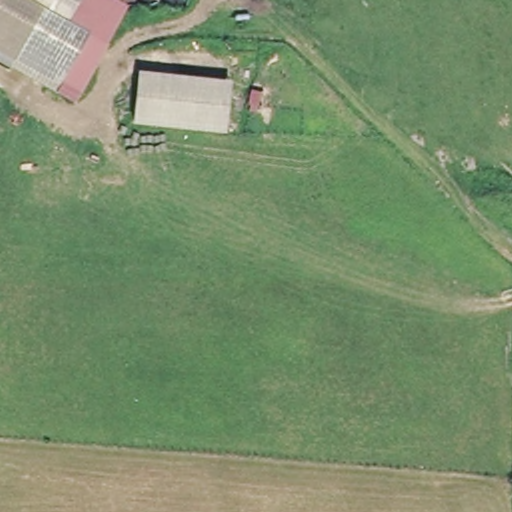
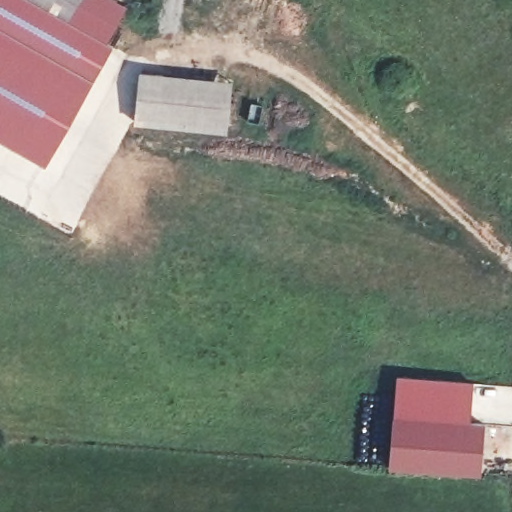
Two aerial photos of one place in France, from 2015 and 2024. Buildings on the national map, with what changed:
demolished [(90,34),(57,91),(0,59),(0,0),(83,0),(69,21),(90,34)]
new [(41,162),(0,140),(0,0),(83,0),(69,21),(90,34),(57,91),(74,101),(41,162)]
unchanged [(57,91),(90,34),(69,21),(83,0),(107,0),(126,11),(74,101),(57,91)]
unchanged [(231,86),(225,135),(135,124),(141,74),(231,86)]
new [(472,382),(470,421),(486,423),(482,475),(388,468),(395,375),(472,382)]

